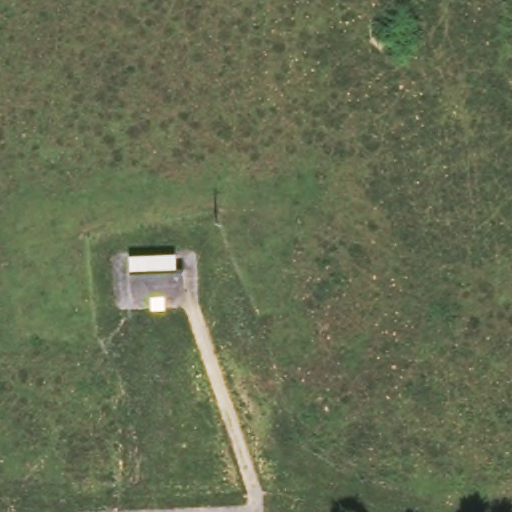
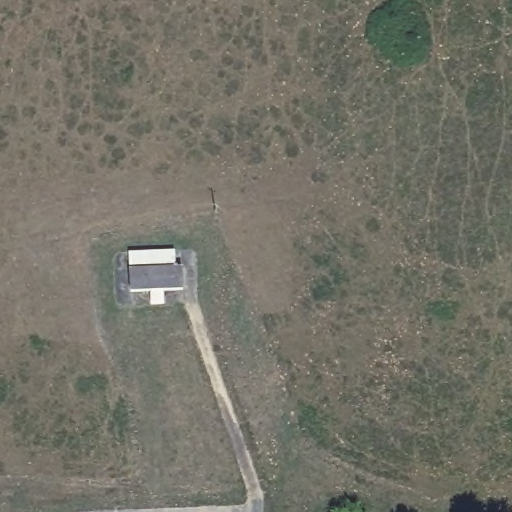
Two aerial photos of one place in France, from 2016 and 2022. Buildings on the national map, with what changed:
unchanged [(156,253),(172,254),(172,268),(182,268),(182,295),(131,295),(131,253),(156,253)]

